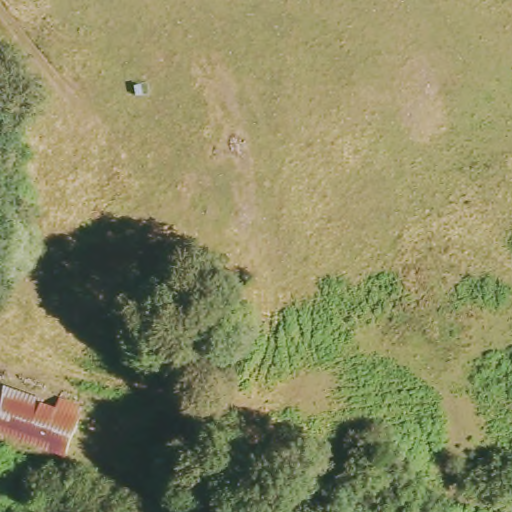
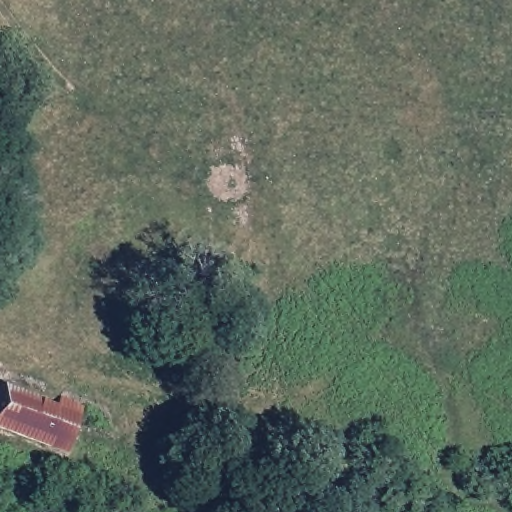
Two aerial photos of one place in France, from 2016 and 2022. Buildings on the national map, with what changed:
unchanged [(0,408),(12,376),(93,406),(75,458),(0,431),(0,408)]

